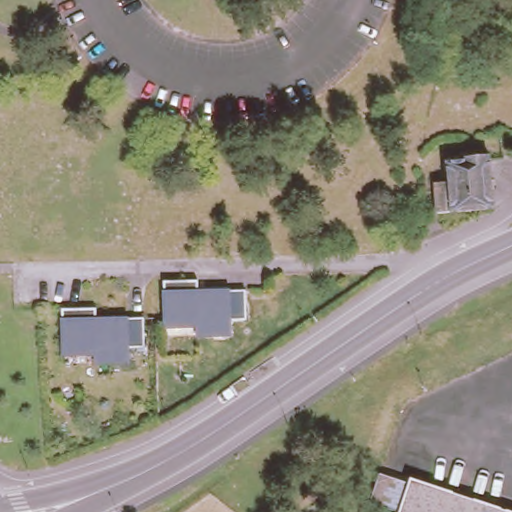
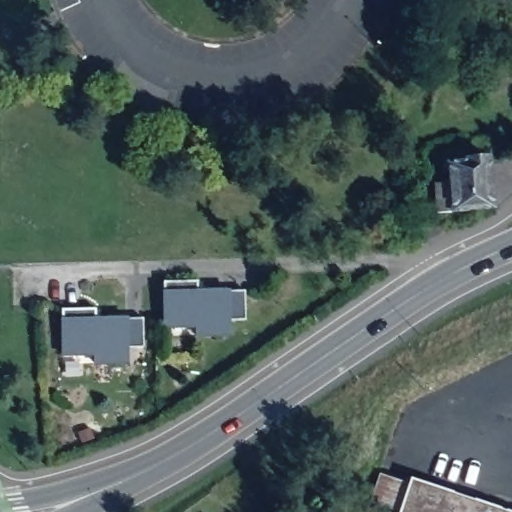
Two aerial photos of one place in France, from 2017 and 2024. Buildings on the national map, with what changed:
unchanged [(434,176),(447,175),(445,154),(452,154),(452,150),(462,149),(462,142),(469,142),(469,154),(488,152),(491,200),(491,202),(489,203),(482,204),(449,206),(435,206),(434,176)]
unchanged [(194,278),(194,289),(242,288),(242,318),(225,318),(226,332),(193,333),(193,324),(160,325),(160,279),(194,278)]
unchanged [(92,305),(92,316),(140,315),(140,345),(124,346),(124,360),(91,360),(90,351),(59,352),(58,306),(92,305)]
unchanged [(369,501),(377,474),(406,482),(408,477),(509,512),(396,512),(397,510),(369,501)]

